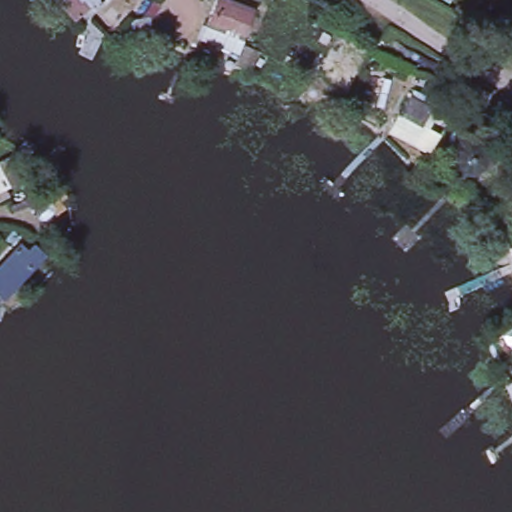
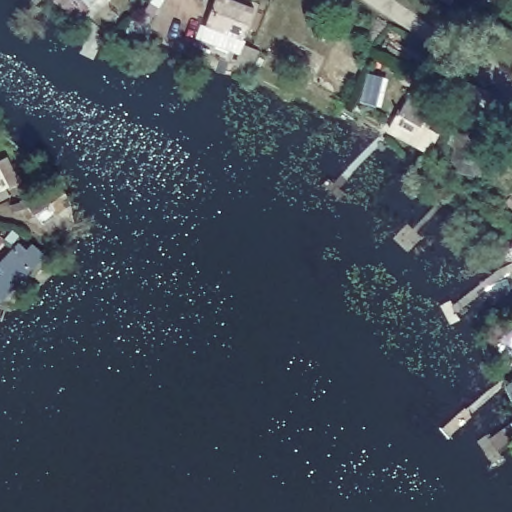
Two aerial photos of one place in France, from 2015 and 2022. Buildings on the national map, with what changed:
unchanged [(76,15),(62,0),(96,0),(76,15)]
unchanged [(255,5),(234,52),(196,43),(211,0),(235,0),(255,5)]
unchanged [(364,59),(352,82),(339,75),(335,85),(305,69),(312,51),(325,54),(331,44),(364,59)]
unchanged [(437,105),(427,131),(397,116),(409,90),(437,105)]
unchanged [(15,177),(0,186),(0,154),(3,153),(15,177)]
unchanged [(62,201),(40,219),(12,187),(27,175),(34,183),(45,176),(62,201)]

